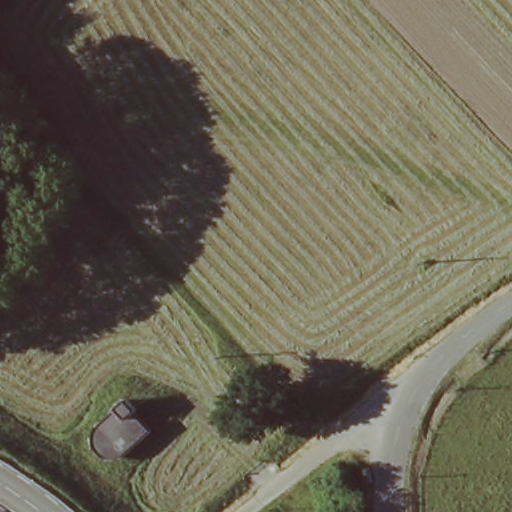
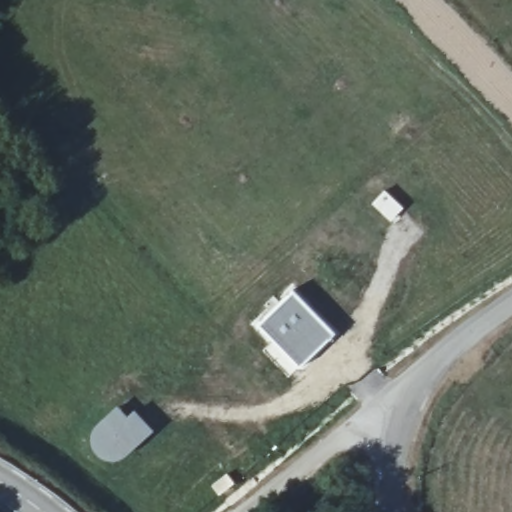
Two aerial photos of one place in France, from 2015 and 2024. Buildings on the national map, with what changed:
new [(301,367),(257,322),(293,288),(336,332),(301,367)]
unchanged [(115,462),(106,462),(96,457),(90,452),(86,445),(90,437),(95,429),(100,425),(100,419),(116,402),(125,407),(130,404),(148,428),(120,460),(115,462)]

